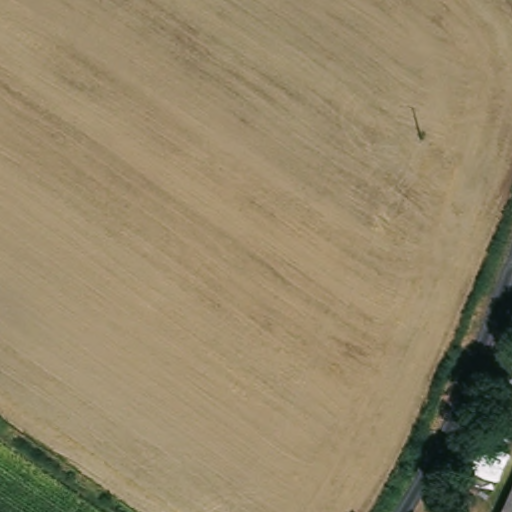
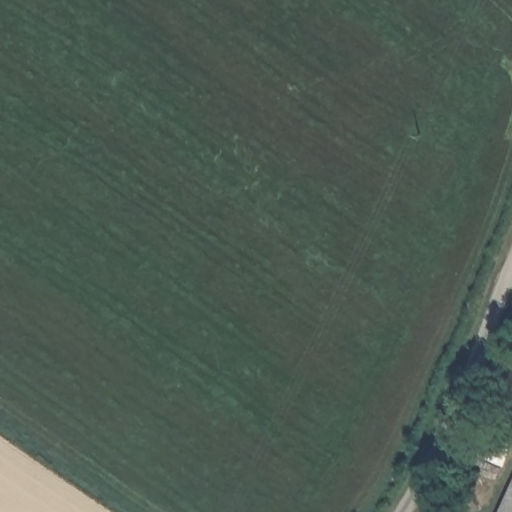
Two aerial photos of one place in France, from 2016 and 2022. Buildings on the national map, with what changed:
unchanged [(499,391),(505,378),(506,375),(512,359),(512,396),(499,391)]

